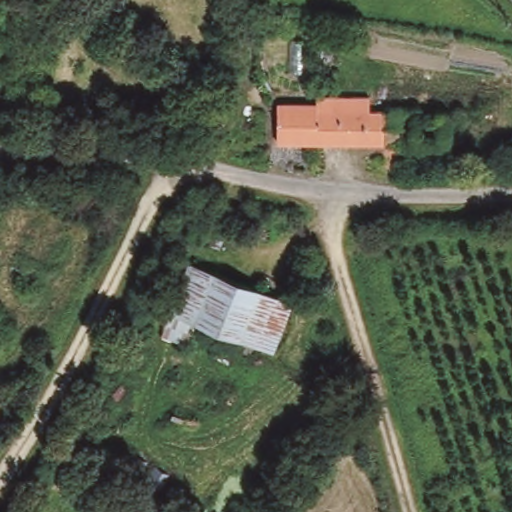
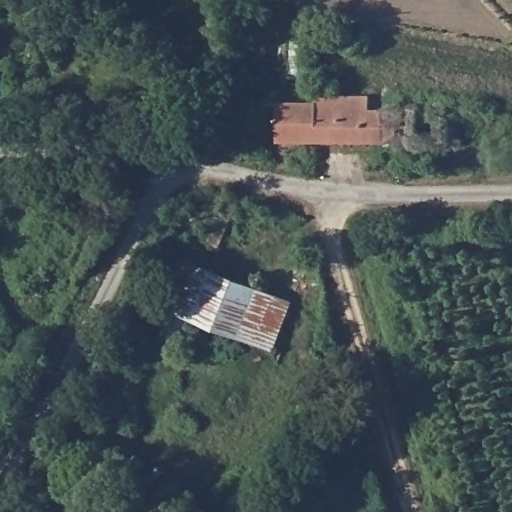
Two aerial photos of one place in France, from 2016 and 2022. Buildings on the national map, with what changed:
unchanged [(440,163),(439,138),(278,138),(279,102),(318,101),(318,106),(342,106),(342,94),(374,94),(374,106),(415,105),(415,111),(468,111),(468,138),(463,138),(464,163),(440,163)]
unchanged [(289,297),(272,344),(173,307),(190,260),(289,297)]

